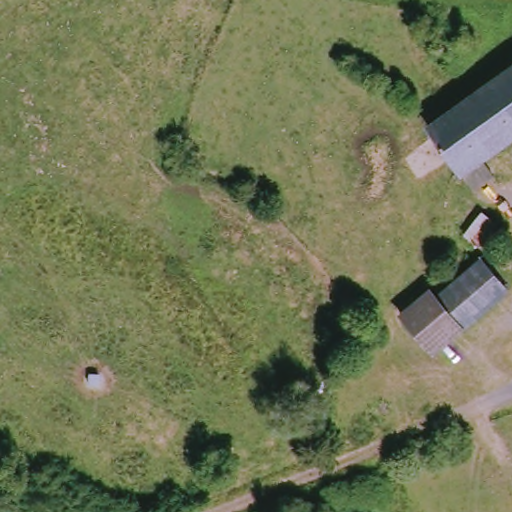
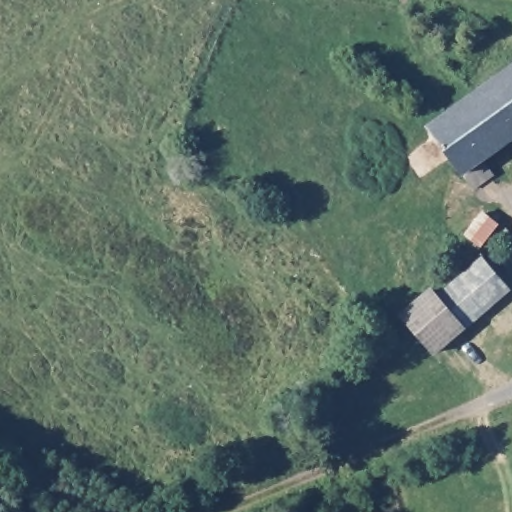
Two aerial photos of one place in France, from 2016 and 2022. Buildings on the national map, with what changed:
unchanged [(424,129),(512,64),(512,142),(465,178),(424,129)]
unchanged [(422,299),(425,297),(431,305),(476,267),(502,297),(428,361),(400,329),(397,324),(399,322),(422,299)]

